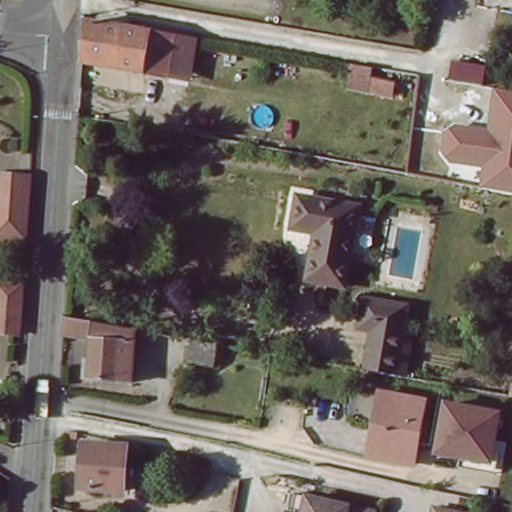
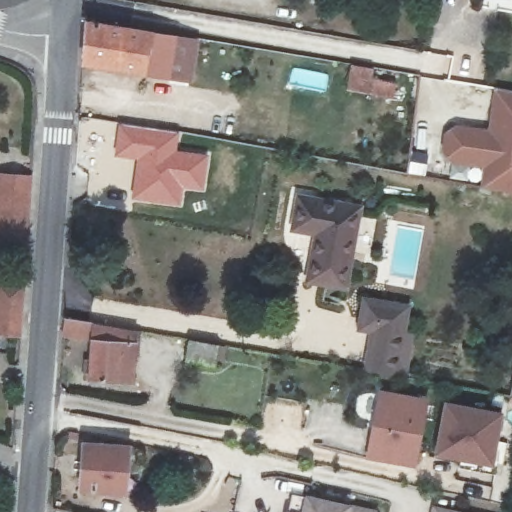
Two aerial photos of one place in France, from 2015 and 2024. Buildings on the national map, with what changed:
unchanged [(89,63),(93,23),(189,39),(198,41),(191,81),(141,73),(89,63)]
unchanged [(346,68),(369,71),(366,91),(343,86),(346,68)]
unchanged [(512,92),(512,193),(482,188),(484,168),(454,162),(444,154),(448,133),(458,125),(489,129),(496,89),(512,92)]
new [(116,123),(180,131),(178,149),(211,154),(205,193),(185,191),(182,208),(130,202),(134,159),(112,156),(116,123)]
unchanged [(35,178),(35,183),(33,205),(31,241),(23,240),(0,238),(0,176),(28,177),(35,178)]
unchanged [(316,237),(291,232),(298,200),(358,212),(344,288),(307,281),(316,237)]
unchanged [(10,330),(0,329),(0,281),(14,282),(22,283),(19,331),(10,330)]
unchanged [(412,305),(409,331),(418,333),(408,377),(366,369),(371,336),(358,332),(366,297),(412,305)]
unchanged [(131,382),(89,380),(92,335),(65,333),(67,317),(134,329),(131,382)]
unchanged [(219,346),(216,362),(208,360),(205,375),(179,370),(185,340),(219,346)]
unchanged [(414,466),(369,458),(376,423),(381,395),(388,396),(427,404),(414,466)]
unchanged [(507,419),(501,447),(511,448),(506,479),(466,471),(466,463),(442,459),(450,408),(507,419)]
unchanged [(81,439),(129,443),(125,493),(78,490),(81,439)]
unchanged [(299,500),(342,512),(295,512),(299,500)]

